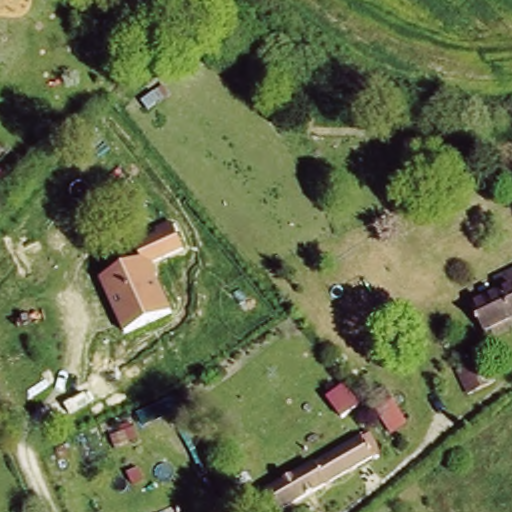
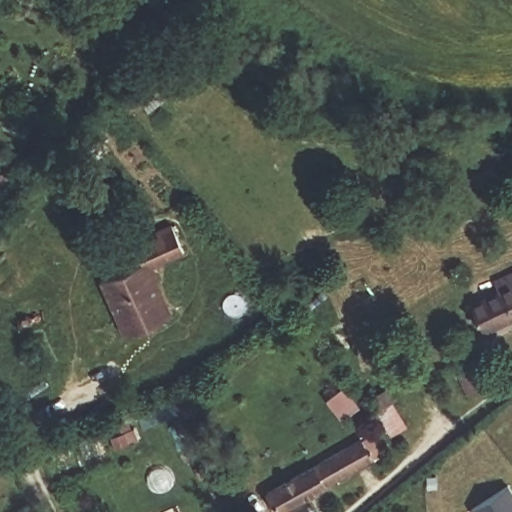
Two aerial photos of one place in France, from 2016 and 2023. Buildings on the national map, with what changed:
unchanged [(100,278),(140,264),(133,246),(157,235),(154,229),(172,224),(182,255),(154,269),(170,318),(123,336),(100,278)]
unchanged [(479,317),(505,304),(500,293),(512,288),(512,337),(492,346),(479,317)]
unchanged [(480,402),(470,406),(465,396),(475,390),(480,402)]
unchanged [(374,413),(394,399),(407,427),(388,438),(374,413)]
unchanged [(372,433),(385,455),(285,512),(277,512),(268,490),(372,433)]
new [(512,484),(512,512),(476,512),(473,508),(512,484)]

